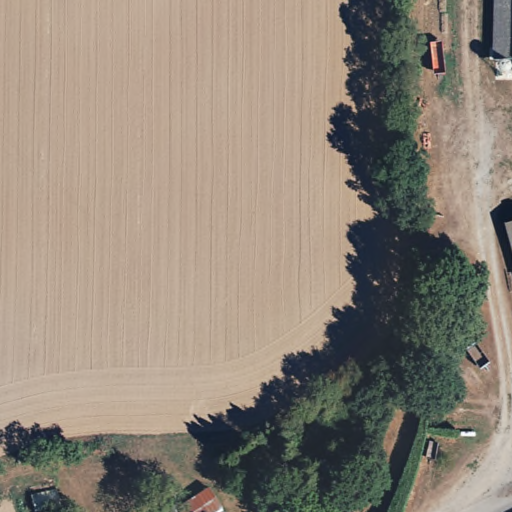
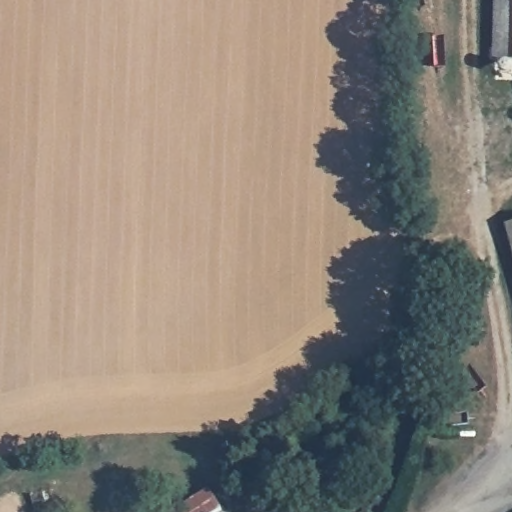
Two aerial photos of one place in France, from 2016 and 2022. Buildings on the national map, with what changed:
unchanged [(494,0),(512,0),(512,59),(492,59),(494,0)]
unchanged [(512,224),(512,233),(510,225),(512,224)]
unchanged [(216,510),(213,512),(163,512),(202,489),(216,510)]
unchanged [(219,512),(213,512),(216,510),(219,512)]

